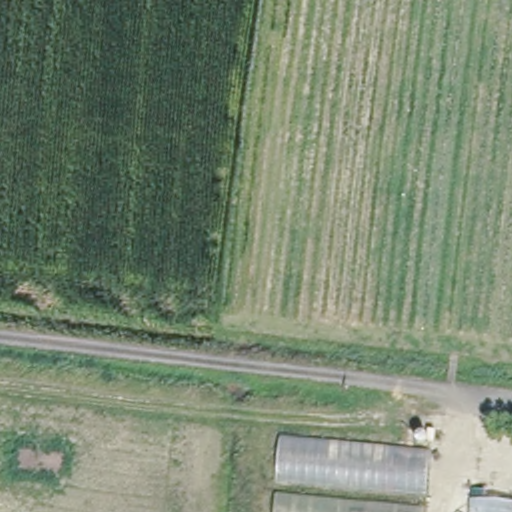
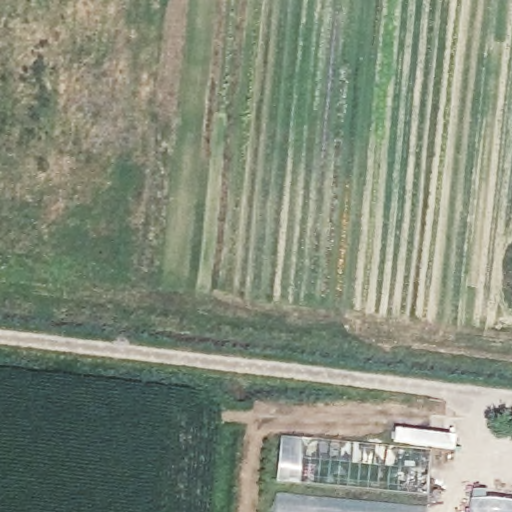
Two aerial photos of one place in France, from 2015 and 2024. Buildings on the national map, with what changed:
unchanged [(424,512),(275,512),(282,442),(429,455),(424,512)]
unchanged [(474,512),(475,497),(512,500),(512,512),(474,512)]

